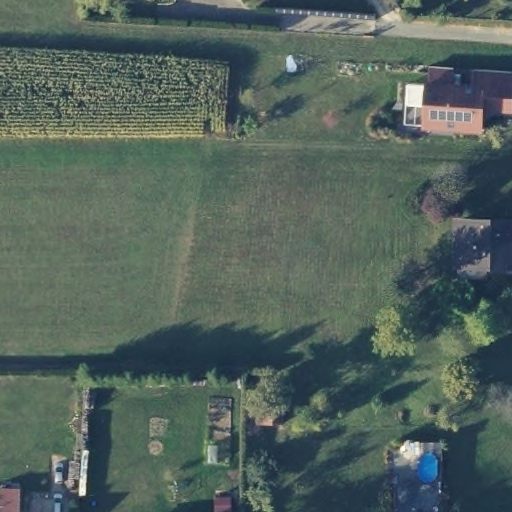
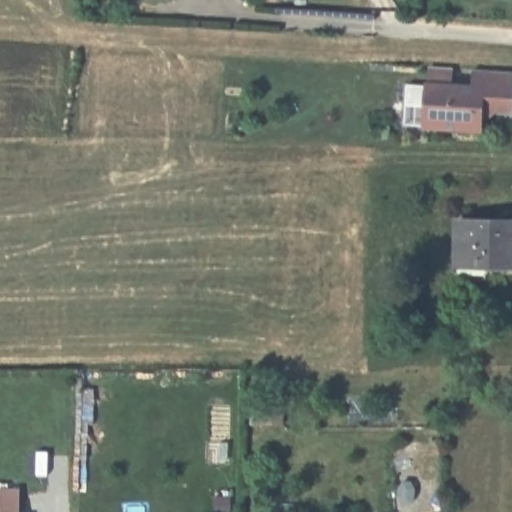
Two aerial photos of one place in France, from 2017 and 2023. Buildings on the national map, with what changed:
unchanged [(427,86),(473,89),(475,71),(512,72),(512,101),(512,110),(488,110),(488,116),(482,115),(480,131),(439,129),(425,128),(426,107),(427,86)]
unchanged [(512,266),(455,266),(457,222),(512,224),(512,266)]

